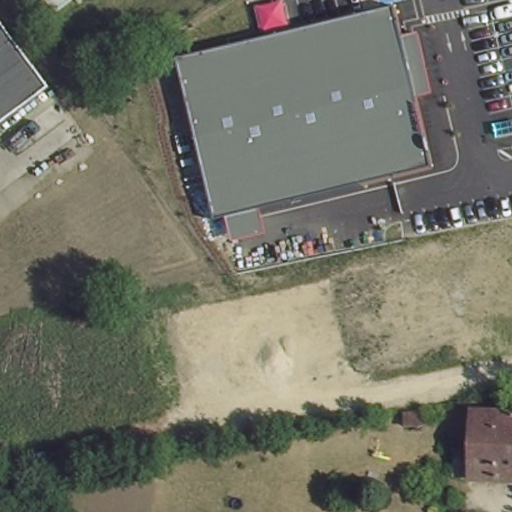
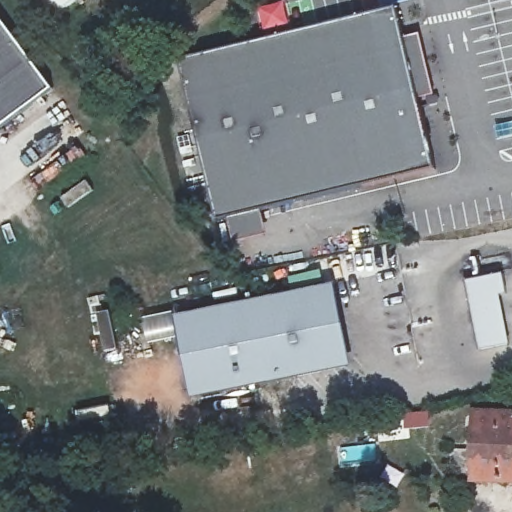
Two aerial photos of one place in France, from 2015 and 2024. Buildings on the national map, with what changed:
unchanged [(49,0),(78,0),(60,14),(49,0)]
unchanged [(396,8),(403,38),(419,33),(434,94),(419,99),(433,169),(261,209),(267,237),(234,244),(228,216),(215,219),(178,59),(396,8)]
unchanged [(58,87),(0,134),(0,16),(58,87)]
new [(504,295),(512,340),(512,346),(488,351),(475,303),(473,304),(469,283),(506,274),(510,294),(504,295)]
new [(340,288),(355,369),(197,399),(182,319),(340,288)]
unchanged [(474,415),(512,416),(512,478),(471,478),(474,415)]

